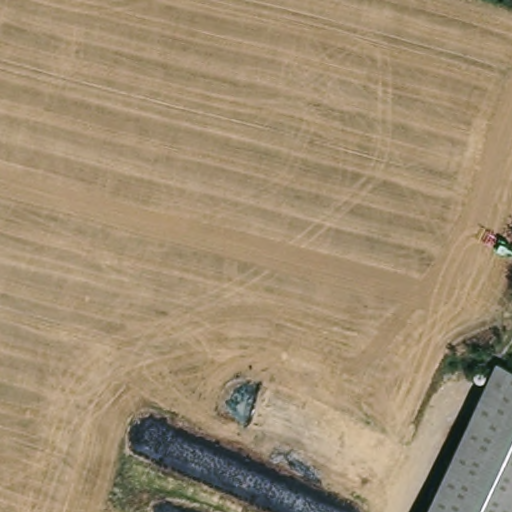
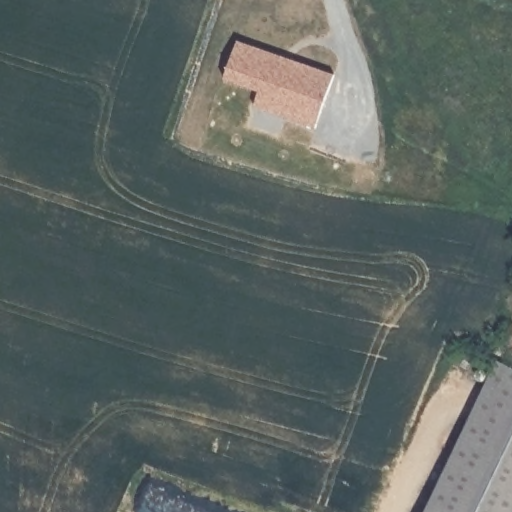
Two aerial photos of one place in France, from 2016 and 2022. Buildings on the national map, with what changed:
new [(334,75),(315,129),(255,106),(260,93),(224,79),(236,40),(334,75)]
unchanged [(512,512),(427,512),(496,362),(512,368),(512,512)]

